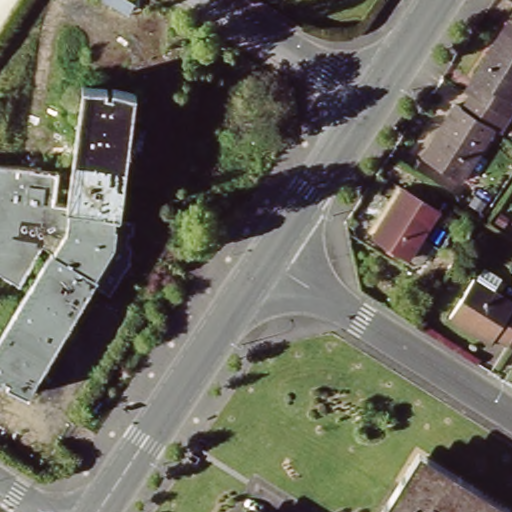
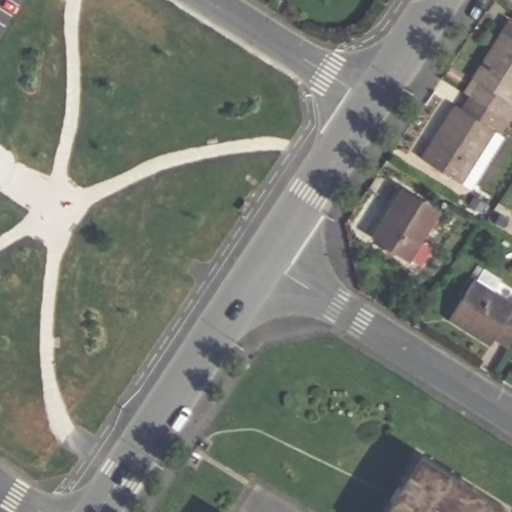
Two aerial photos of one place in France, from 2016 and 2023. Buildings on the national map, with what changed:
unchanged [(512,104),(512,117),(509,122),(472,97),(481,84),(474,79),(504,32),(510,21),(512,23),(512,101),(511,103),(512,104)]
demolished [(31,288),(0,272),(0,167),(56,174),(52,205),(67,205),(81,84),(134,91),(117,211),(115,221),(134,222),(130,258),(111,291),(93,282),(28,392),(0,378),(0,337),(31,288)]
unchanged [(509,122),(500,136),(493,132),(460,184),(423,160),(458,106),(464,110),(472,97),(509,122)]
unchanged [(403,190),(439,213),(408,261),(373,239),(403,190)]
unchanged [(495,340),(491,346),(450,320),(474,281),(512,305),(512,343),(509,348),(495,340)]
unchanged [(506,512),(392,512),(426,460),(506,512)]

